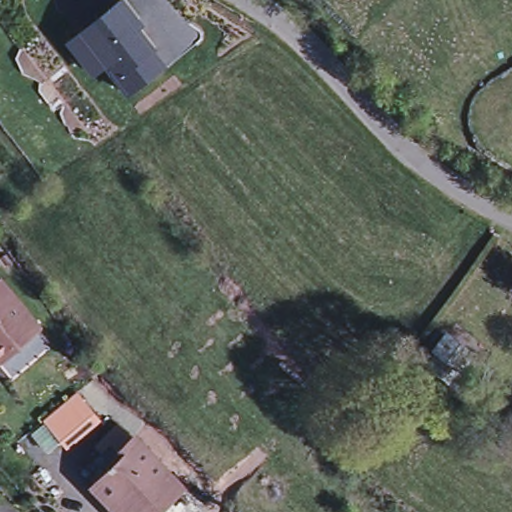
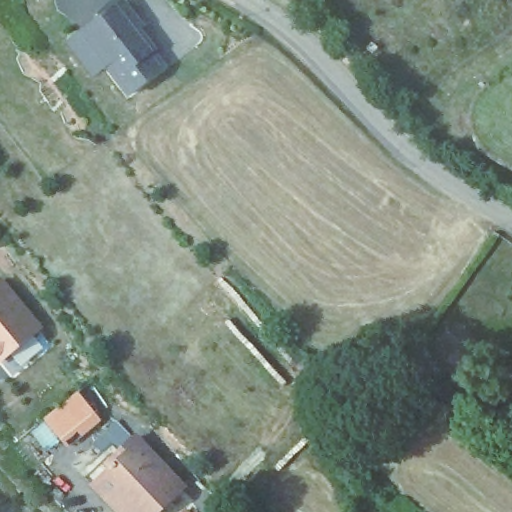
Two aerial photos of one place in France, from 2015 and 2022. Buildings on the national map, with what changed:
unchanged [(64,45),(76,36),(118,4),(133,24),(129,27),(148,52),(146,54),(159,70),(123,97),(101,68),(88,77),(64,45)]
unchanged [(4,356),(0,352),(0,281),(2,279),(41,325),(4,356)]
unchanged [(452,380),(429,361),(440,346),(464,364),(452,380)]
unchanged [(79,391),(102,422),(65,451),(43,419),(79,391)]
unchanged [(182,490),(159,512),(123,512),(96,483),(122,461),(118,455),(134,441),(182,490)]

